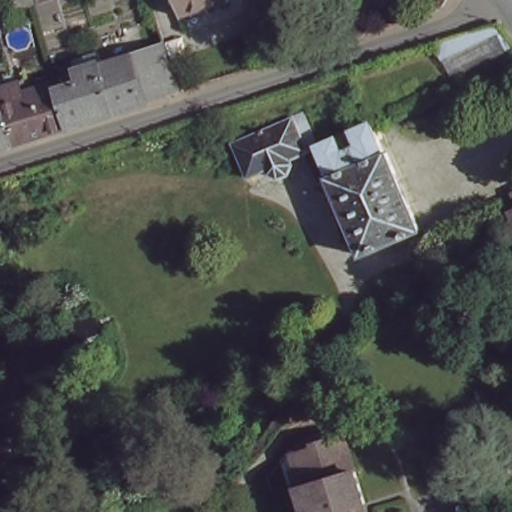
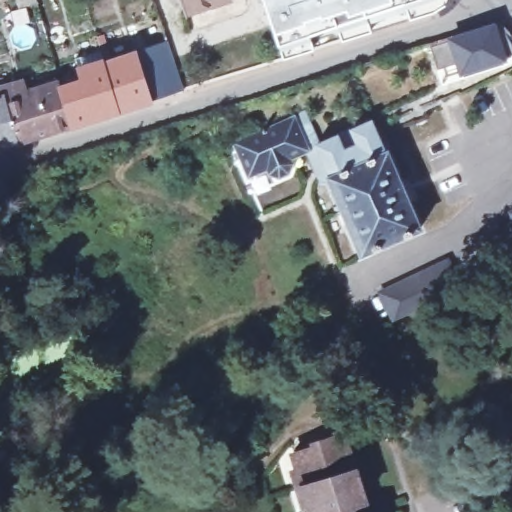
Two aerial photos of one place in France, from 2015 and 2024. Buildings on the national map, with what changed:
unchanged [(236,3),(188,19),(181,0),(235,0),(236,3)]
new [(445,4),(431,12),(409,19),(406,8),(365,21),(368,33),(340,42),(336,28),(309,36),(313,50),(281,60),(278,47),(273,33),(262,0),(446,0),(445,4)]
unchanged [(500,19),(507,26),(512,34),(512,50),(451,72),(432,33),(491,14),(500,19)]
unchanged [(105,63),(168,45),(184,93),(120,114),(105,63)]
unchanged [(71,130),(60,90),(88,81),(83,58),(102,52),(105,63),(120,114),(71,130)]
unchanged [(2,92),(30,84),(34,99),(60,90),(71,130),(49,137),(17,147),(5,102),(2,92)]
unchanged [(17,147),(0,153),(0,104),(5,102),(17,147)]
unchanged [(314,142),(366,121),(379,150),(381,149),(417,228),(357,253),(324,180),(316,183),(313,181),(300,153),(284,160),(286,165),(285,168),(284,173),(270,179),(263,176),(262,174),(261,170),(241,178),(225,145),(301,114),(314,142)]
unchanged [(510,212),(512,211),(512,217),(510,212)]
new [(447,295),(395,320),(380,292),(448,258),(456,274),(440,281),(447,295)]
unchanged [(343,437),(363,500),(359,501),(362,512),(311,512),(293,453),(343,437)]

